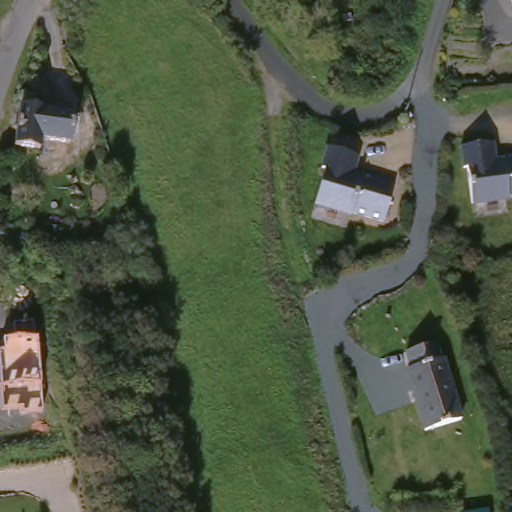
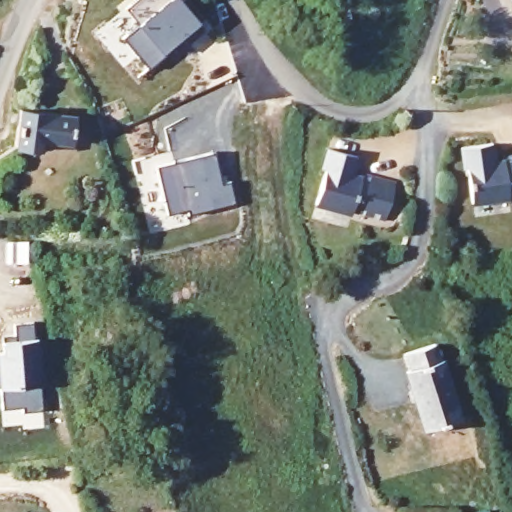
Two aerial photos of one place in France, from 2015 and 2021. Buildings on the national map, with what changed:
new [(137,25),(124,9),(135,0),(177,0),(180,3),(183,0),(185,0),(202,21),(197,24),(204,32),(187,46),(180,39),(162,54),(165,57),(147,71),(121,39),(137,25)]
unchanged [(46,120),(47,115),(54,116),(52,121),(76,124),(72,149),(45,145),(44,153),(19,149),(23,117),(46,120)]
unchanged [(493,166),(501,166),(500,160),(512,159),(512,199),(505,200),(505,202),(467,206),(464,170),(460,171),(458,150),(491,147),(493,166)]
unchanged [(337,155),(353,159),(348,179),(357,181),(357,175),(392,184),(382,222),(350,214),(350,216),(312,207),(321,172),(317,172),(320,162),(322,151),(337,155)]
new [(174,152),(176,163),(217,153),(224,185),(232,183),(237,205),(190,216),(189,212),(169,216),(158,167),(137,172),(135,161),(156,156),(174,152)]
unchanged [(24,413),(22,407),(4,409),(2,387),(0,387),(0,352),(4,352),(2,341),(37,338),(42,384),(46,411),(24,413)]
unchanged [(403,376),(398,359),(426,349),(432,365),(435,363),(457,424),(421,437),(400,378),(403,376)]

